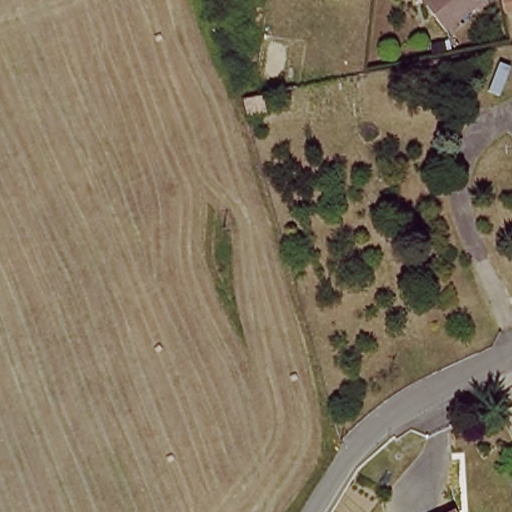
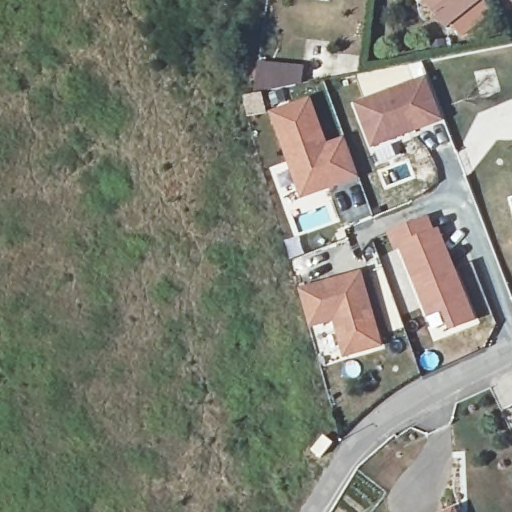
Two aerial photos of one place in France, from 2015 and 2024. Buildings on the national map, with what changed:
unchanged [(430,0),(487,0),(447,29),(430,0)]
new [(425,75),(443,124),(370,151),(352,104),(425,75)]
unchanged [(250,118),(245,95),(245,93),(255,93),(261,93),(263,102),(266,114),(256,118),(250,118)]
new [(310,99),(326,145),(342,139),(358,179),(300,200),(268,112),(310,99)]
new [(428,213),(435,228),(438,227),(477,320),(442,330),(436,315),(425,320),(385,229),(428,213)]
new [(362,272),(382,347),(342,359),(333,324),(309,330),(298,289),(362,272)]
unchanged [(458,512),(451,512),(457,509),(458,512)]

